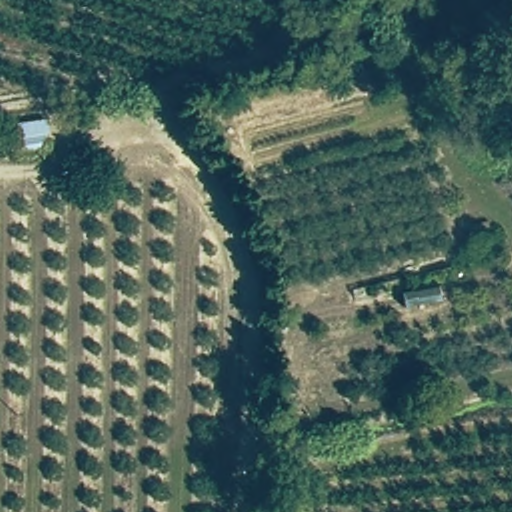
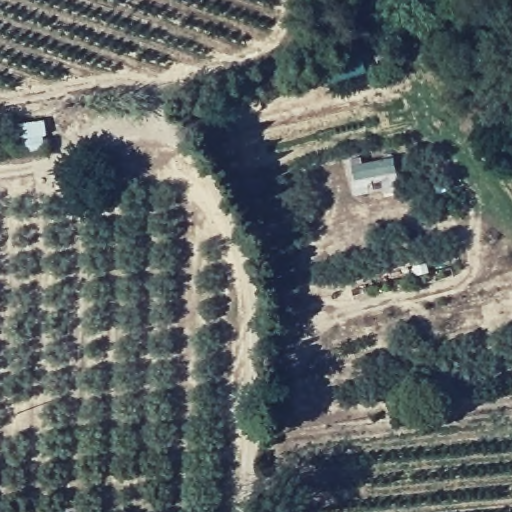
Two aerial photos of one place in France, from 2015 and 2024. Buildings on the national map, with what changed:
unchanged [(46,123),(47,150),(14,155),(11,125),(46,123)]
new [(402,193),(386,196),(384,191),(354,196),(352,180),(354,179),(352,164),(394,157),(402,193)]

